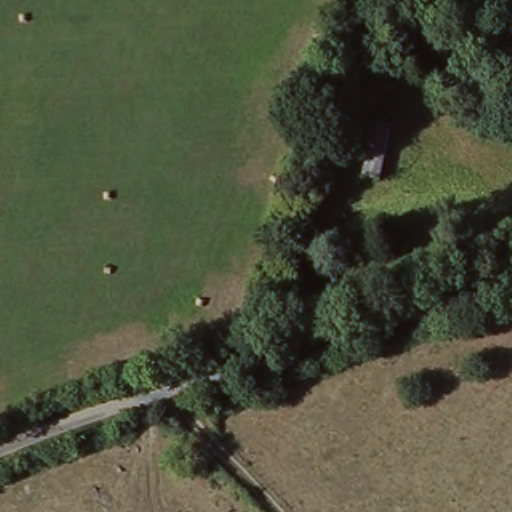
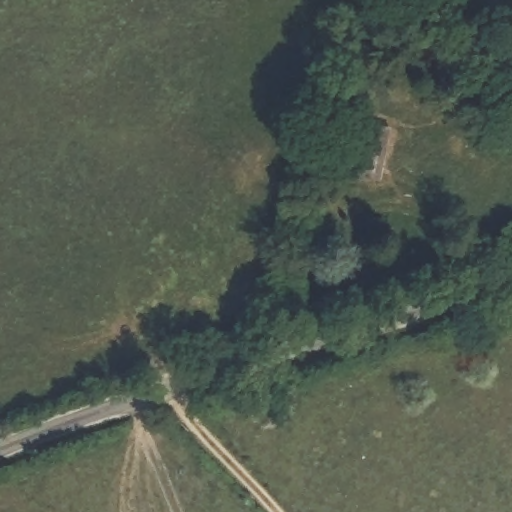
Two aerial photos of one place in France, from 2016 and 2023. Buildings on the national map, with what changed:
unchanged [(387,129),(377,180),(360,176),(371,127),(387,129)]

